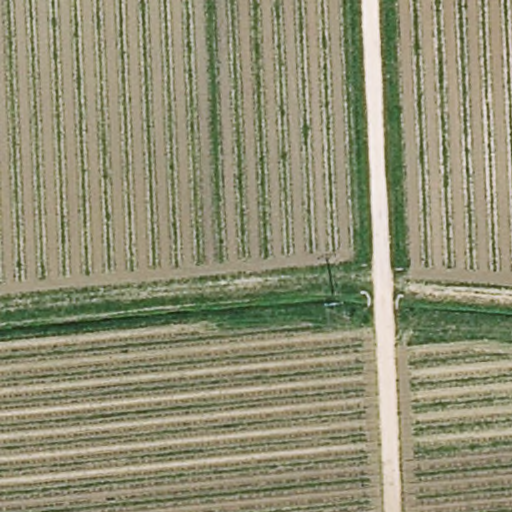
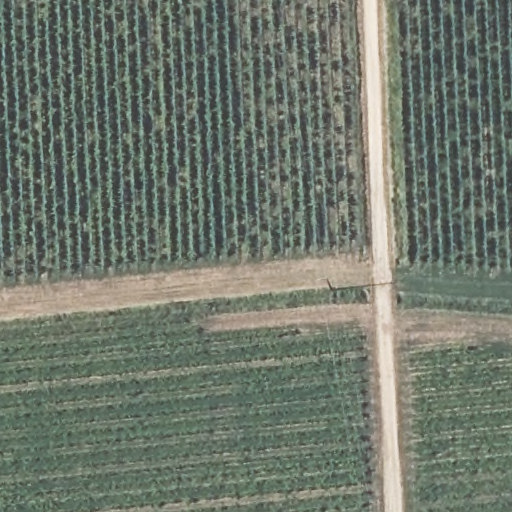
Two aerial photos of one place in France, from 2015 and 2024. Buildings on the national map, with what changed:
[]

